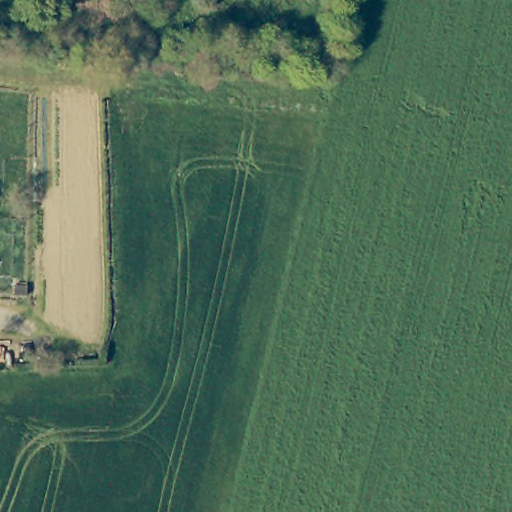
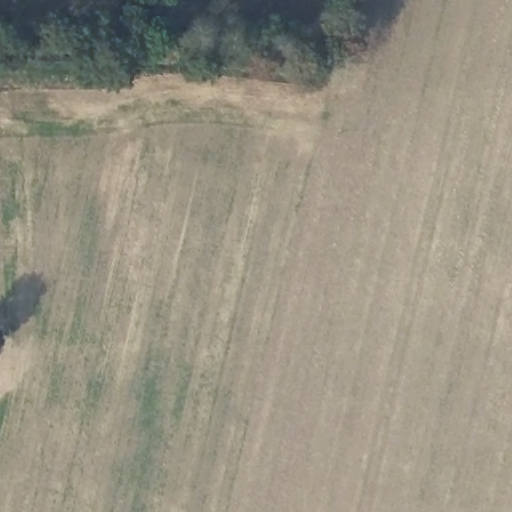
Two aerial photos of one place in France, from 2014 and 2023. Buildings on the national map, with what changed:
[]

